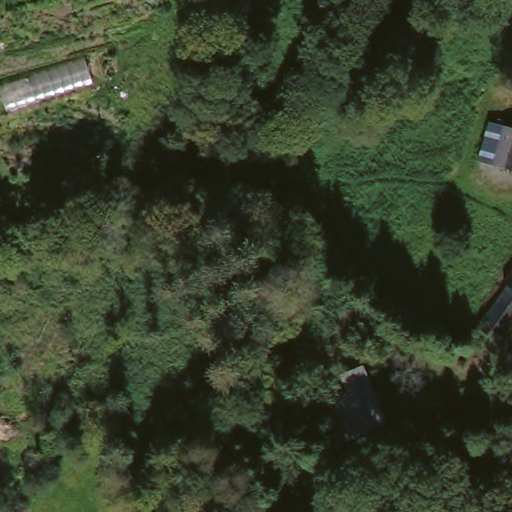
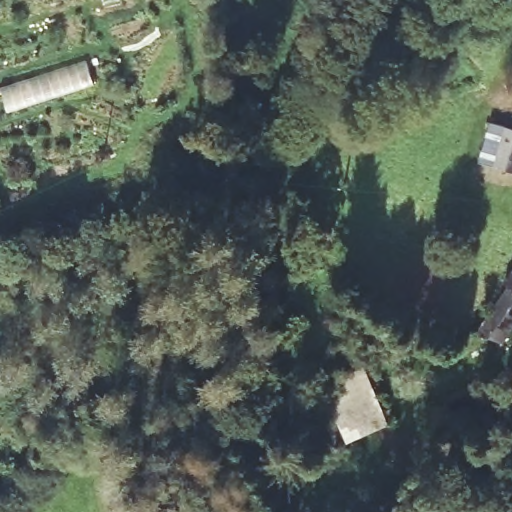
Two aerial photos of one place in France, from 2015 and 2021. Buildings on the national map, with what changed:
unchanged [(500,170),(479,164),(491,121),(511,128),(512,128),(512,173),(500,170)]
unchanged [(505,339),(478,318),(512,270),(512,329),(505,339)]

